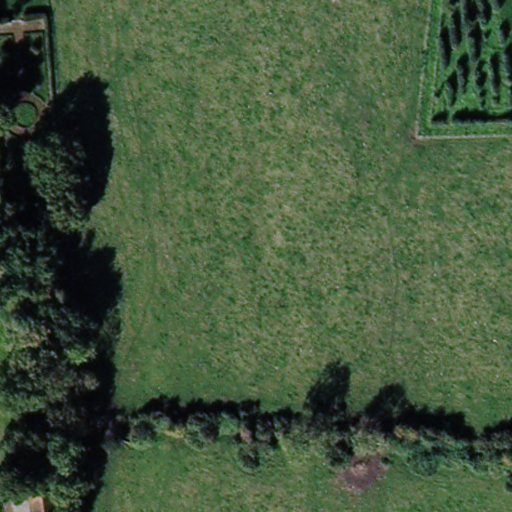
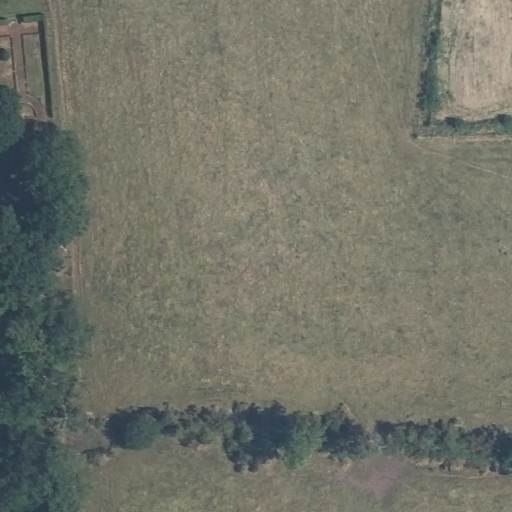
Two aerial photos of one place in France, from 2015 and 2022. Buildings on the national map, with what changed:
unchanged [(58,498),(60,512),(24,512),(23,501),(58,498)]

